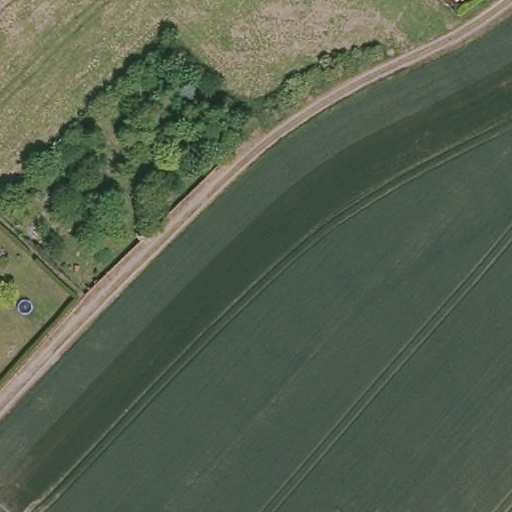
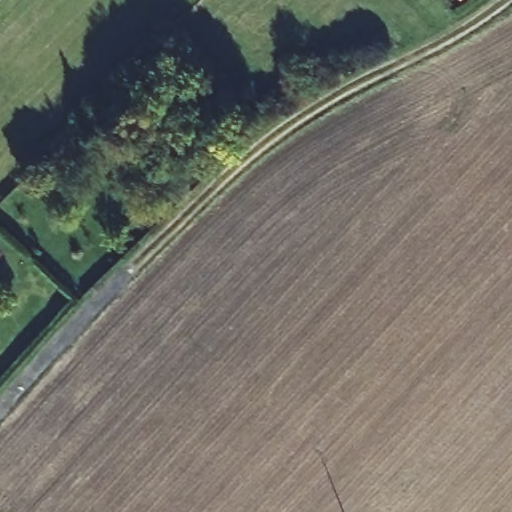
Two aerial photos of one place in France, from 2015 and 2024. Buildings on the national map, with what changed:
[]

